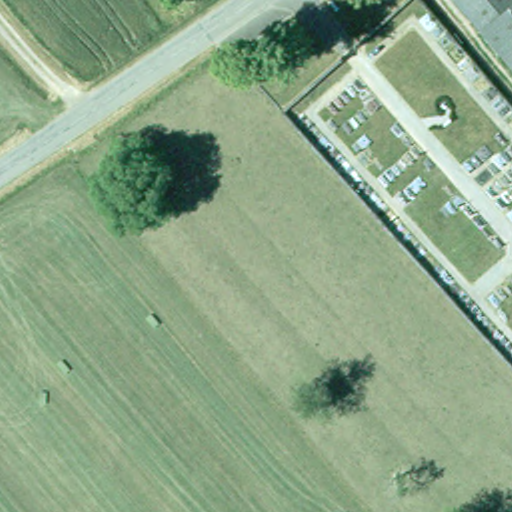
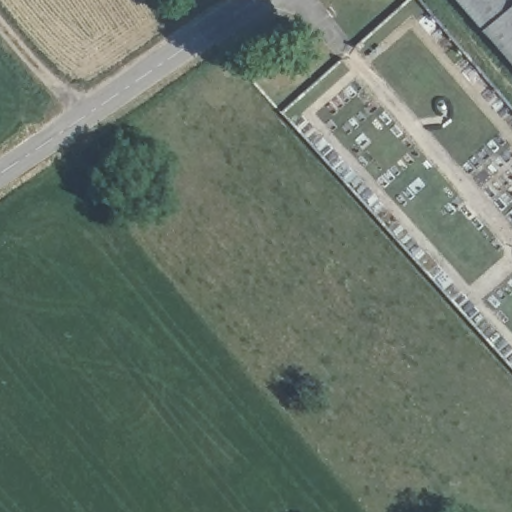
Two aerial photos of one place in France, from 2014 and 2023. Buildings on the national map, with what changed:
unchanged [(512,66),(456,0),(512,0),(512,66)]

